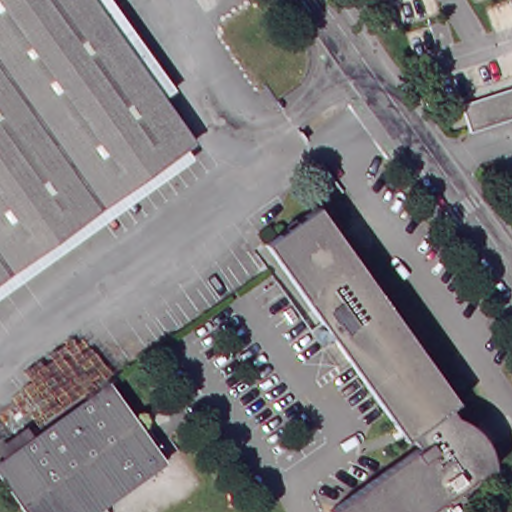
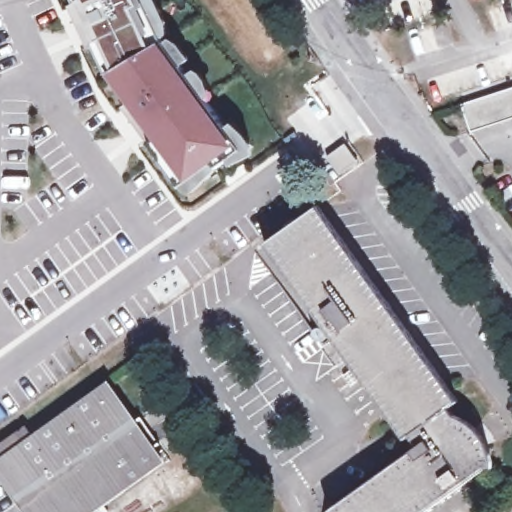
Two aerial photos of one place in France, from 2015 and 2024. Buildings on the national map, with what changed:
demolished [(186,138),(0,270),(0,0),(100,0),(162,87),(194,132),(186,138)]
new [(237,144),(189,180),(109,75),(74,0),(140,0),(160,43),(237,144)]
unchanged [(471,132),(462,106),(512,89),(512,118),(471,132)]
unchanged [(467,407),(459,412),(464,420),(477,427),(489,437),(495,446),(503,467),(441,512),(342,512),(427,451),(420,441),(416,443),(275,247),(327,212),(327,214),(467,407)]
unchanged [(0,470),(0,463),(105,387),(132,424),(140,417),(160,444),(151,450),(159,462),(89,512),(30,512),(0,470)]

